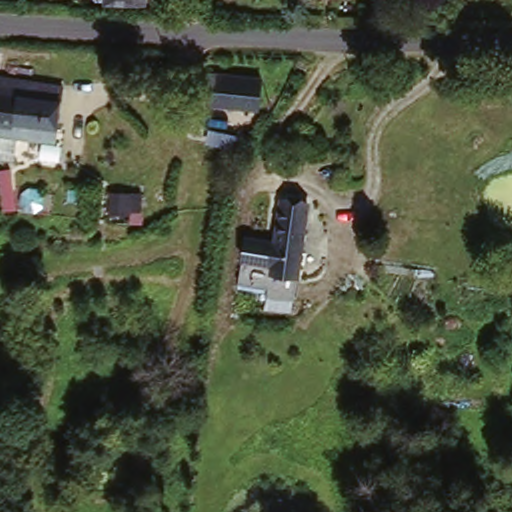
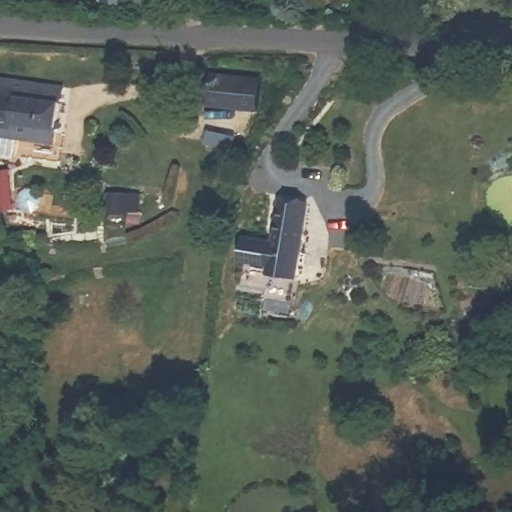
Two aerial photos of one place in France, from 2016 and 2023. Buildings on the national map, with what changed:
unchanged [(136,0),(147,0),(147,1),(136,0)]
unchanged [(264,108),(207,104),(209,69),(265,74),(264,108)]
unchanged [(0,126),(0,95),(62,93),(62,126),(0,126)]
unchanged [(247,231),(277,233),(282,180),(310,183),(300,282),(242,276),(247,231)]
unchanged [(144,191),(144,212),(111,210),(113,191),(144,191)]

